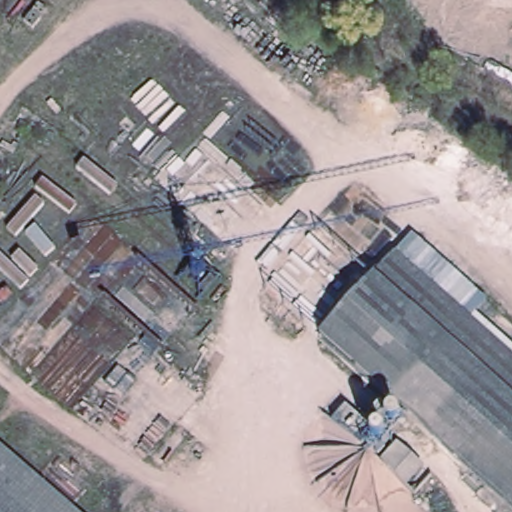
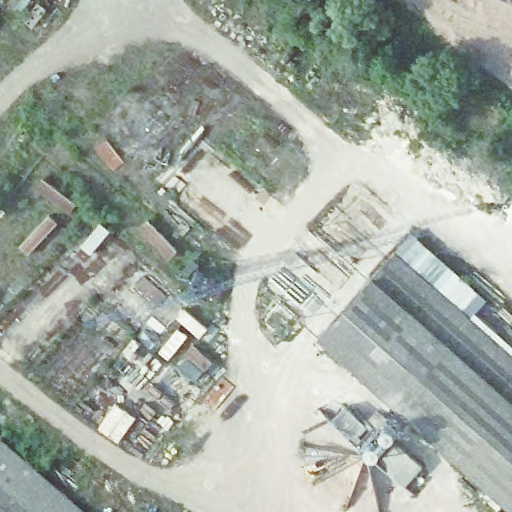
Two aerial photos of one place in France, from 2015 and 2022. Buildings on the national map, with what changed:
unchanged [(485,306),(475,318),(512,352),(512,361),(395,256),(410,239),(485,306)]
unchanged [(395,256),(512,361),(512,512),(511,512),(320,341),(395,256)]
unchanged [(78,512),(0,512),(0,443),(78,512)]
unchanged [(427,467),(420,476),(410,487),(380,464),(398,443),(427,467)]

